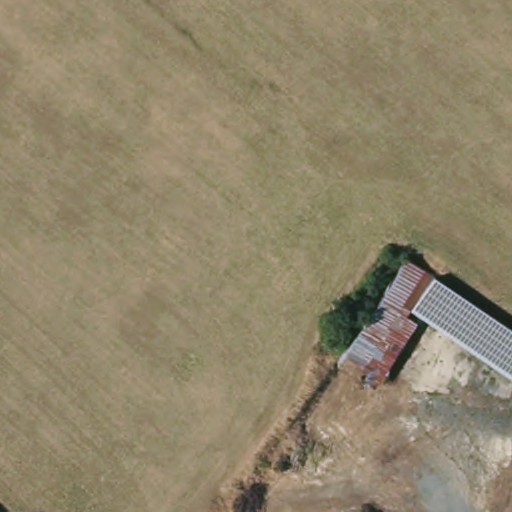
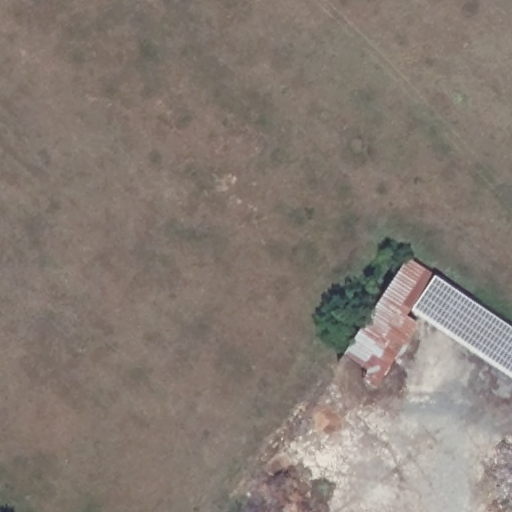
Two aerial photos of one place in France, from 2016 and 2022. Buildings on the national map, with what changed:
unchanged [(421,314),(373,386),(347,369),(417,264),(512,328),(512,375),(421,314)]
unchanged [(506,408),(512,397),(512,412),(506,408)]

